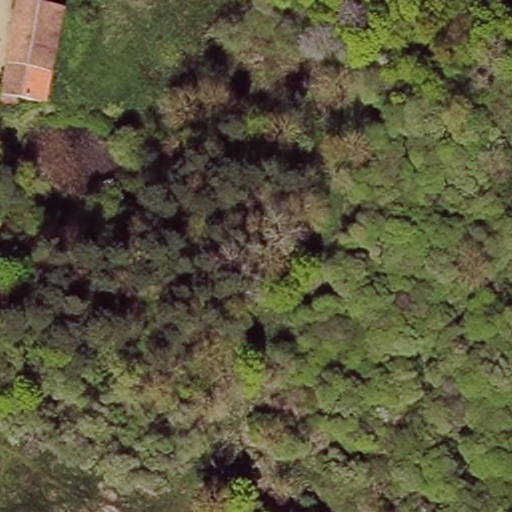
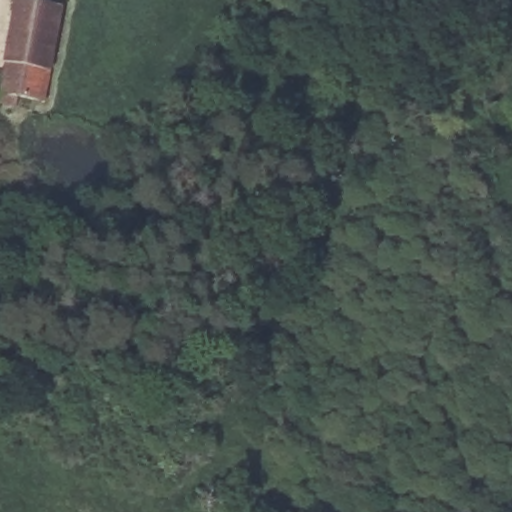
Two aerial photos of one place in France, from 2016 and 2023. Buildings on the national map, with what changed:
unchanged [(64,6),(47,100),(23,95),(20,106),(0,104),(20,0),(29,0),(64,6)]

